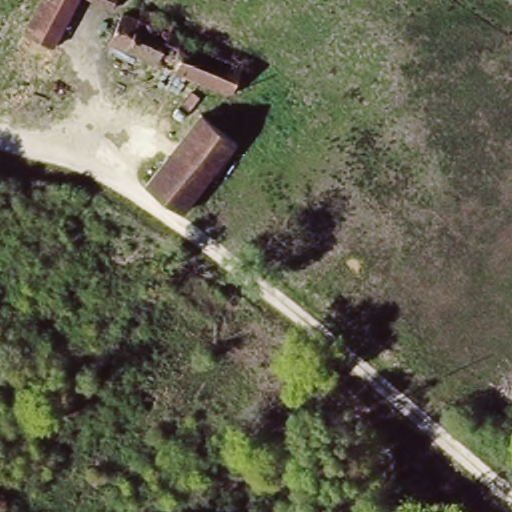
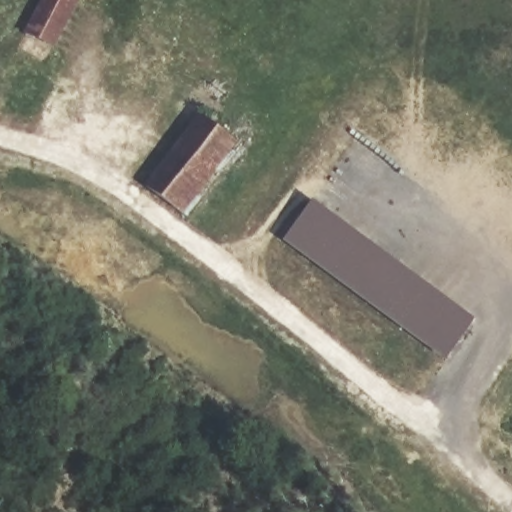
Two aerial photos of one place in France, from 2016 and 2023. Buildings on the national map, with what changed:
unchanged [(16,57),(41,0),(79,0),(47,71),(16,57)]
unchanged [(87,0),(121,0),(117,11),(87,0)]
demolished [(181,32),(176,43),(181,45),(245,77),(231,103),(115,52),(127,23),(142,30),(149,17),(181,32)]
unchanged [(180,215),(148,187),(202,115),(236,140),(180,215)]
new [(445,362),(285,242),(315,200),(477,320),(445,362)]

